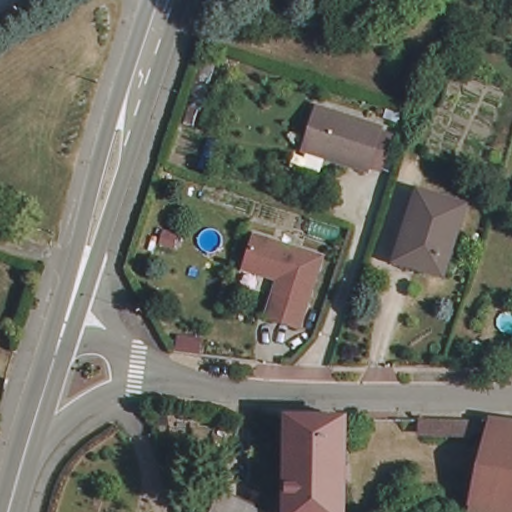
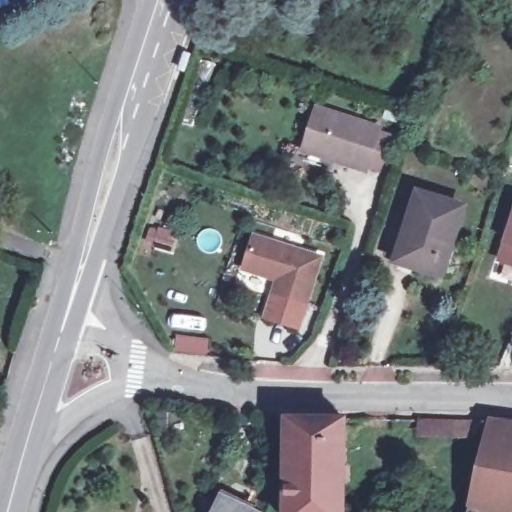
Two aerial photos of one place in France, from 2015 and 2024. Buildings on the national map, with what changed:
unchanged [(375,165),(359,159),(355,171),(338,166),(339,162),(293,147),(307,104),(370,126),(387,131),(375,165)]
unchanged [(396,262),(415,197),(460,211),(441,276),(396,262)]
new [(512,211),(512,265),(497,260),(512,211)]
unchanged [(252,237),(317,257),(295,326),(265,316),(277,278),(242,267),(252,237)]
unchanged [(175,346),(197,348),(195,362),(173,360),(175,346)]
unchanged [(342,416),(340,512),(286,512),(288,415),(342,416)]
unchanged [(504,422),(512,423),(512,512),(499,512),(486,509),(504,422)]
unchanged [(427,427),(480,431),(479,439),(472,443),(427,441),(427,427)]
unchanged [(246,512),(223,512),(229,503),(246,512)]
unchanged [(499,512),(485,512),(486,509),(499,512)]

